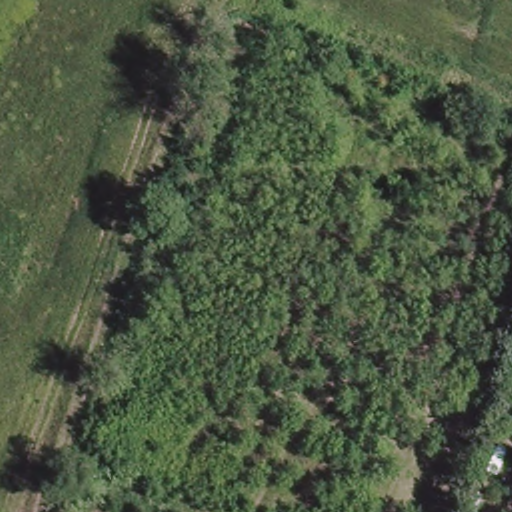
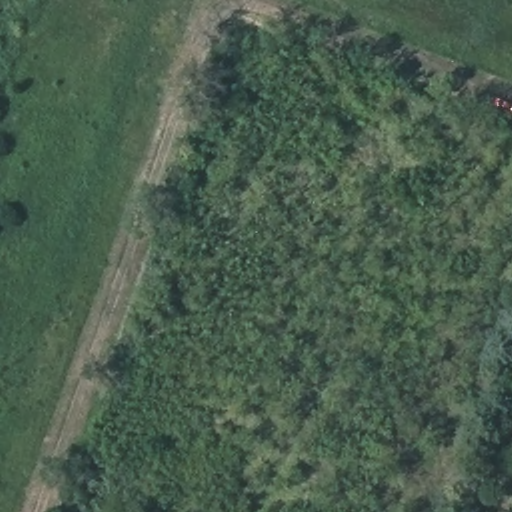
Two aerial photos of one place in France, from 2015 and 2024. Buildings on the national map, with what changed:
unchanged [(240,5),(227,0),(242,0),(240,5)]
unchanged [(484,456),(510,457),(508,489),(482,488),(484,456)]

